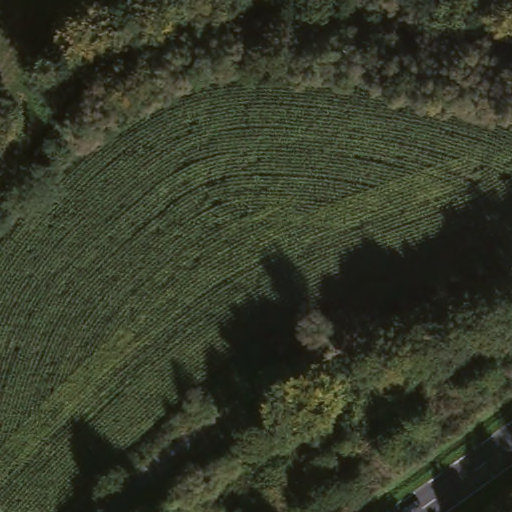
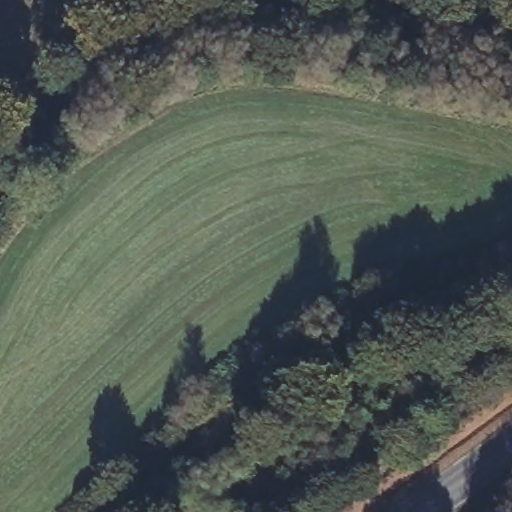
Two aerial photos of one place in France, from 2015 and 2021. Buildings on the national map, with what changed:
[]

